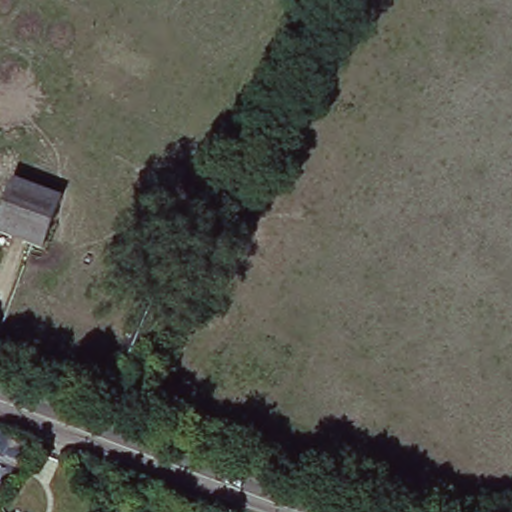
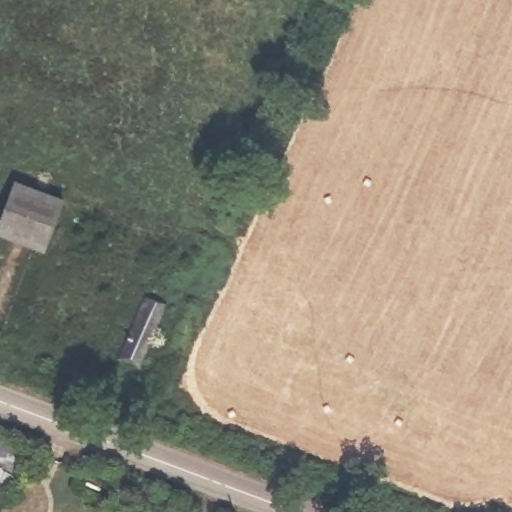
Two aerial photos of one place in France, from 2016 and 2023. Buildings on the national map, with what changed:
unchanged [(62,203),(39,255),(0,237),(0,202),(11,179),(62,203)]
unchanged [(158,316),(128,371),(111,363),(139,307),(158,316)]
unchanged [(4,494),(0,500),(0,492),(4,494)]

